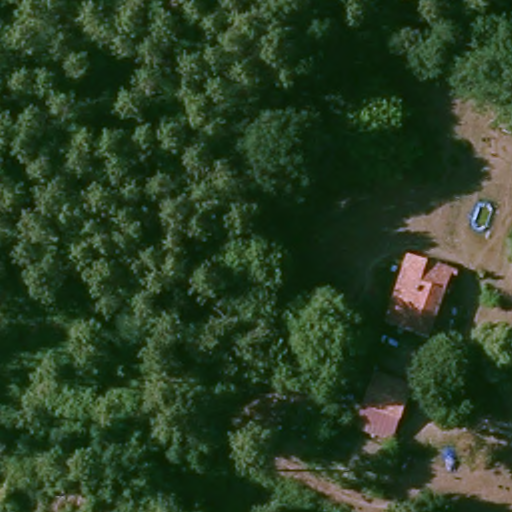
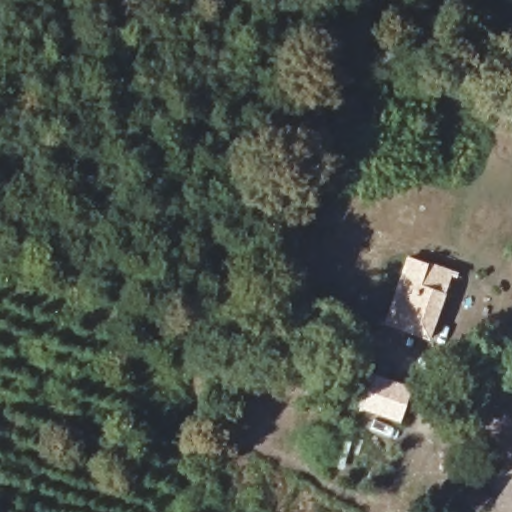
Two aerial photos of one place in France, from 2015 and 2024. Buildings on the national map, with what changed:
unchanged [(434,266),(441,247),(461,253),(436,333),(395,321),(411,259),(434,266)]
unchanged [(404,428),(369,418),(380,374),(416,386),(404,428)]

